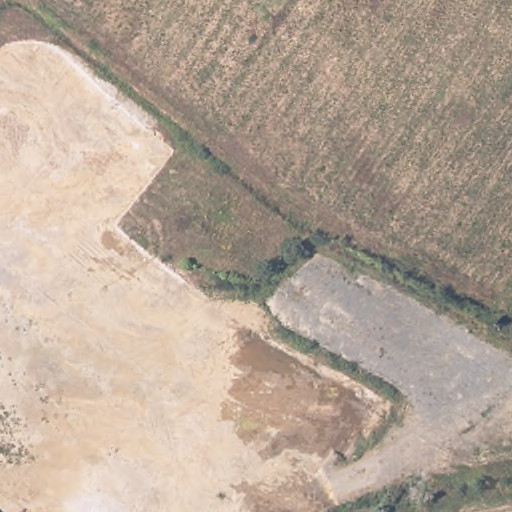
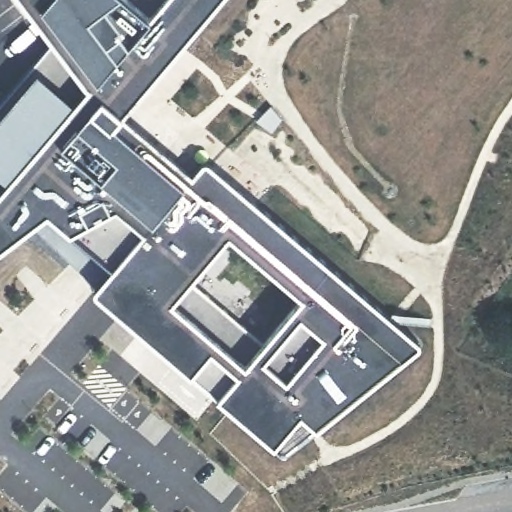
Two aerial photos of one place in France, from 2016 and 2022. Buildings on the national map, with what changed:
new [(35,224),(0,250),(0,117),(57,50),(20,0),(223,0),(125,114),(194,171),(202,160),(205,159),(210,160),(417,338),(420,341),(421,343),(421,346),(318,428),(302,415),(274,447),(92,290),(100,282),(35,224)]
demolished [(152,134),(89,213),(134,249),(20,216),(37,195),(110,101),(152,134)]
demolished [(176,286),(150,320),(127,348),(0,247),(0,241),(20,216),(134,249),(177,284),(176,286)]
demolished [(200,512),(82,512),(0,447),(0,292),(108,378),(128,394),(230,475),(200,512)]
demolished [(202,304),(239,324),(380,401),(378,406),(352,454),(172,357),(202,304)]

